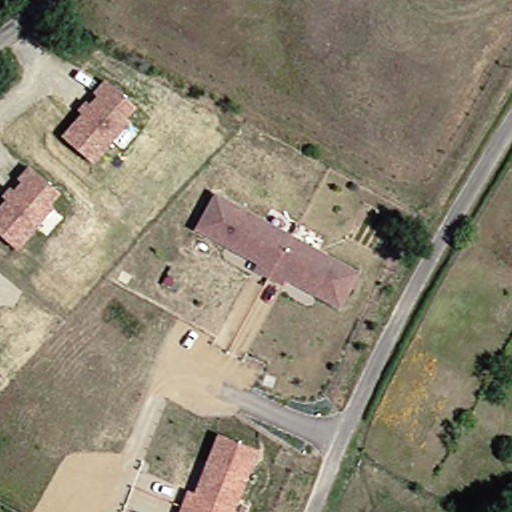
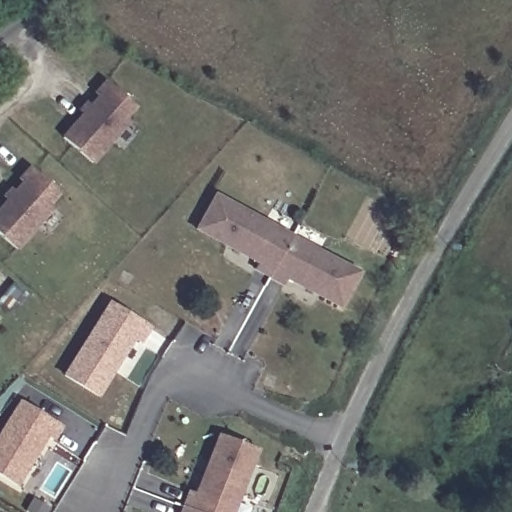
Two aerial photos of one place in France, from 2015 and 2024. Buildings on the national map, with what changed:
unchanged [(125,116),(129,120),(94,162),(76,147),(65,138),(100,96),(96,93),(106,80),(135,105),(129,112),(125,116)]
unchanged [(51,209),(16,251),(0,238),(0,210),(21,184),(17,181),(27,169),(57,194),(50,201),(47,205),(51,209)]
unchanged [(347,263),(358,269),(340,304),(286,276),(282,283),(253,267),(257,261),(195,228),(201,217),(214,193),(347,263)]
new [(143,342),(137,338),(102,396),(69,375),(112,302),(152,327),(143,342)]
new [(65,426),(56,441),(49,437),(20,486),(0,474),(0,445),(25,403),(65,426)]
unchanged [(195,493),(219,435),(259,448),(233,512),(180,512),(187,490),(195,493)]

